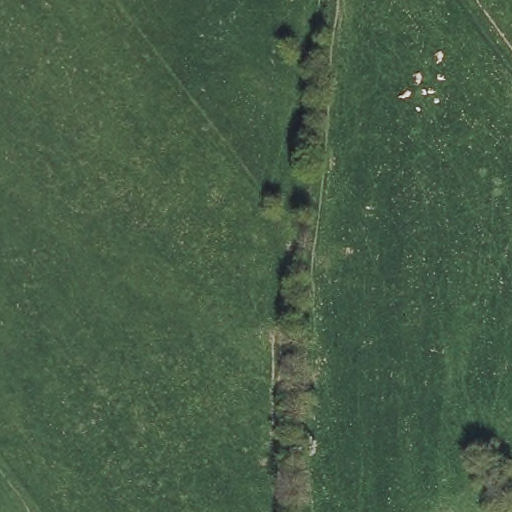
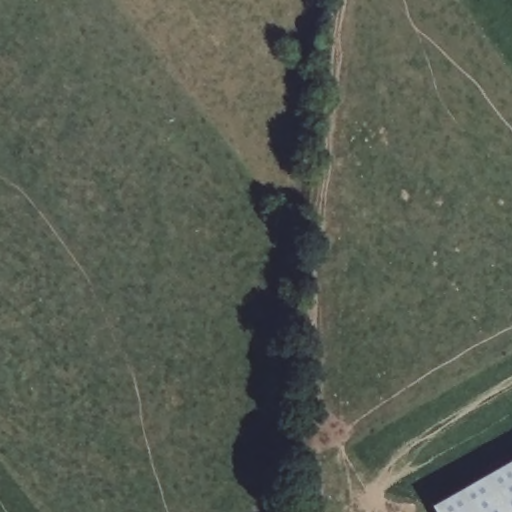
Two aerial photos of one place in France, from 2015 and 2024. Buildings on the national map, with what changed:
new [(436,512),(432,506),(512,461),(512,512),(436,512)]

